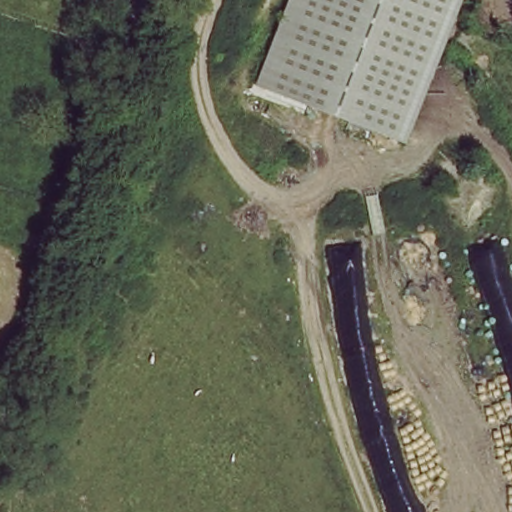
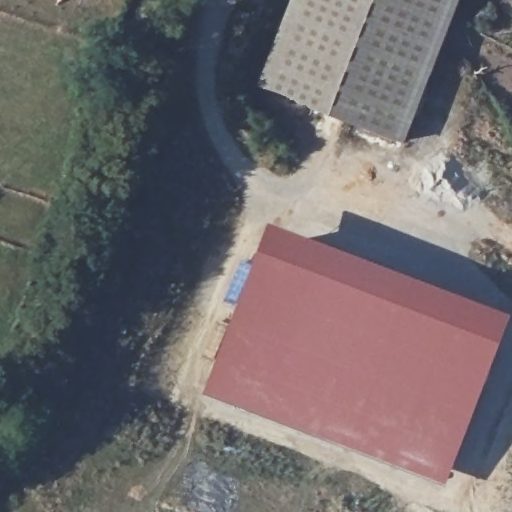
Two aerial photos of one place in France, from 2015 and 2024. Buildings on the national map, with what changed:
unchanged [(460,0),(388,139),(248,65),(283,0),(460,0)]
new [(219,341),(267,226),(511,320),(444,490),(296,437),(200,396),(219,341)]

